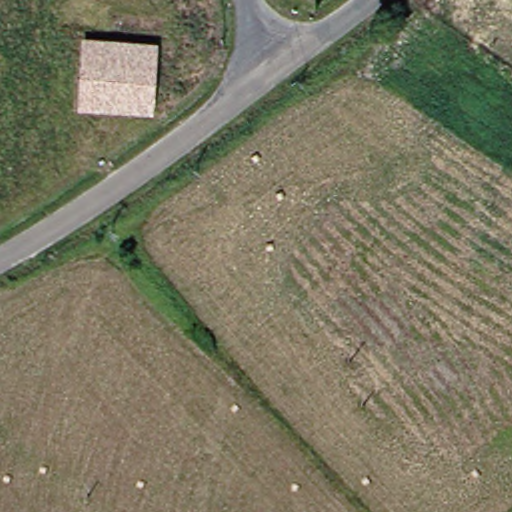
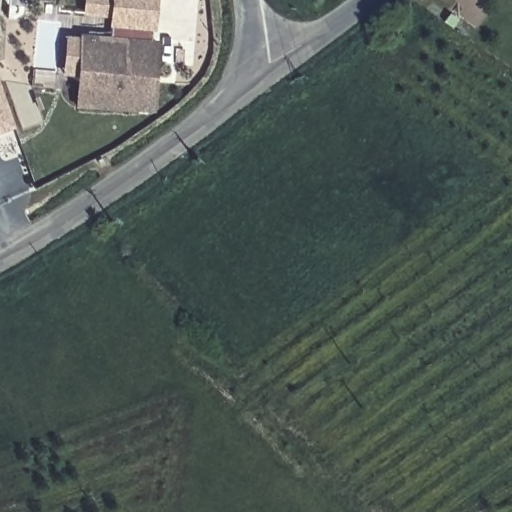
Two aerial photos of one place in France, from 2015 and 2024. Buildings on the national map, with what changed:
new [(150,33),(151,41),(159,42),(155,113),(140,112),(146,44),(111,41),(111,30),(107,29),(108,20),(81,16),(82,0),(157,0),(154,33),(150,33)]
unchanged [(146,44),(140,112),(74,105),(77,50),(69,49),(70,37),(146,44)]
new [(0,134),(0,88),(15,129),(0,134)]

